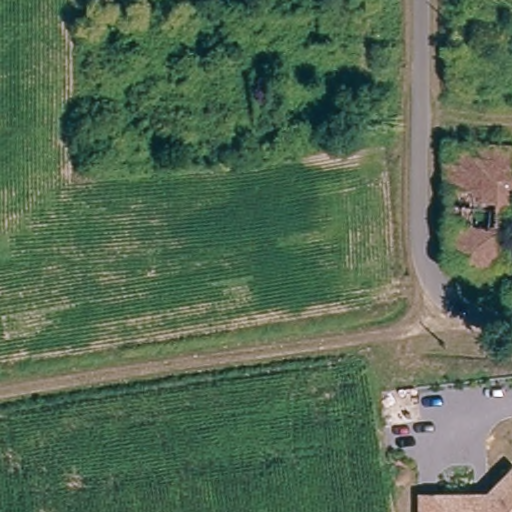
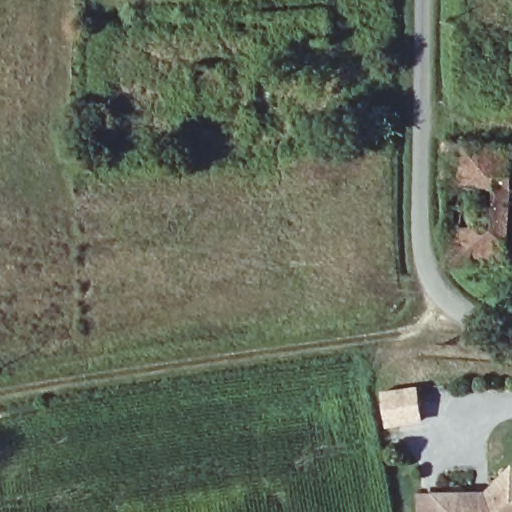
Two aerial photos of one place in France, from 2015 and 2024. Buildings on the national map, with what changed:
unchanged [(512,149),(512,158),(506,262),(449,260),(451,187),(442,187),(447,146),(512,149)]
new [(386,431),(380,389),(418,384),(425,424),(386,431)]
unchanged [(419,494),(441,494),(474,494),(474,499),(486,499),(486,494),(512,468),(512,512),(419,512),(419,494)]

